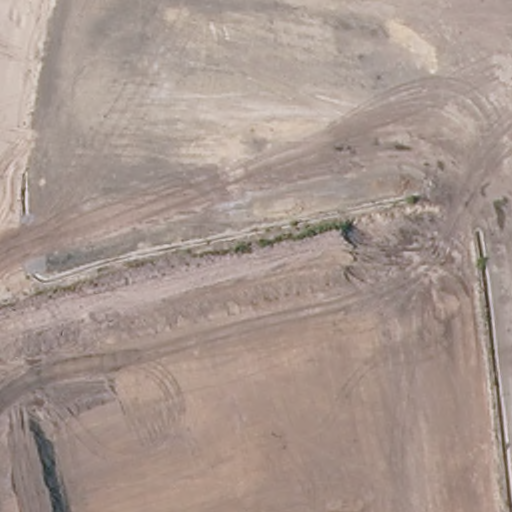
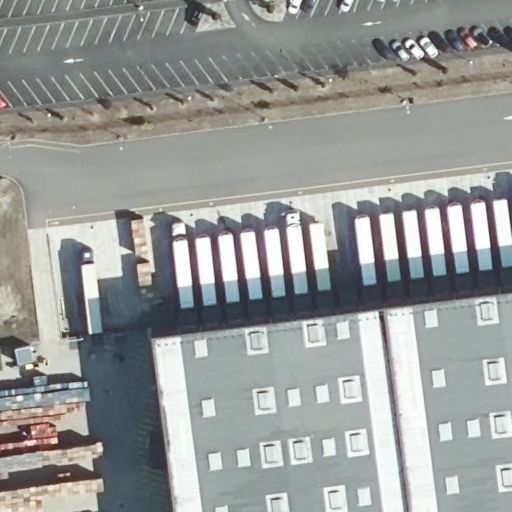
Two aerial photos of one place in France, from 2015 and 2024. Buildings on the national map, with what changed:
new [(512,281),(512,512),(177,512),(153,327),(512,281)]

